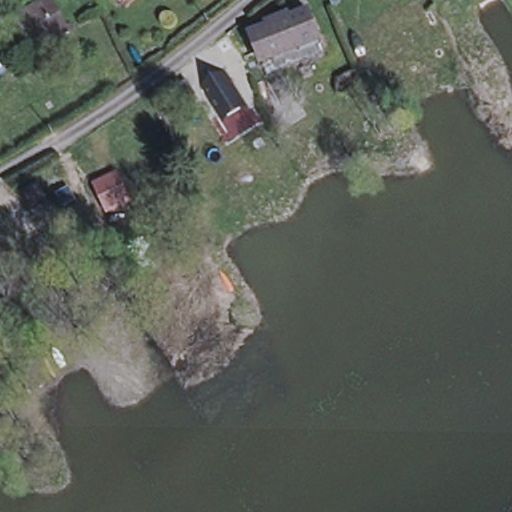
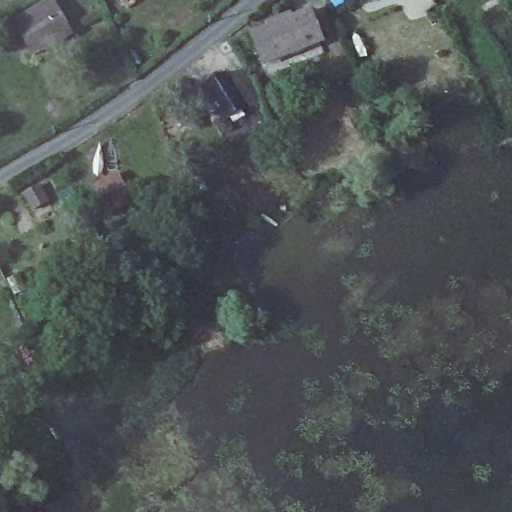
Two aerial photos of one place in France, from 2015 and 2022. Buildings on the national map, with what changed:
unchanged [(43,41),(29,50),(10,16),(37,0),(51,0),(61,17),(67,27),(43,41)]
unchanged [(123,0),(127,0),(125,2),(123,0)]
unchanged [(263,75),(259,62),(249,35),(267,28),(265,23),(285,16),(286,20),(305,14),(314,40),(319,52),(298,60),(294,48),(278,55),(282,66),(263,75)]
unchanged [(225,120),(220,114),(204,86),(225,73),(242,100),(246,107),(225,120)]
unchanged [(119,176),(130,204),(110,212),(99,185),(119,176)]

